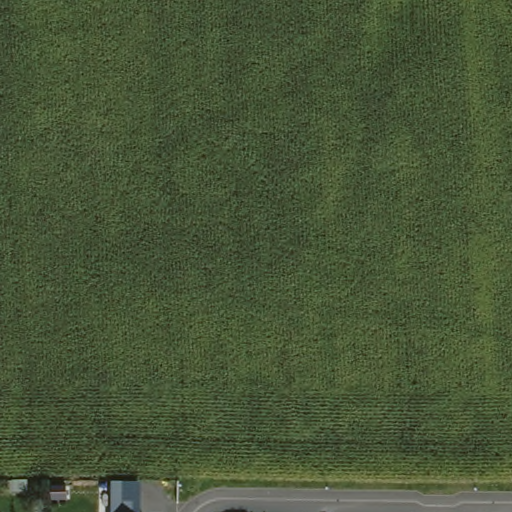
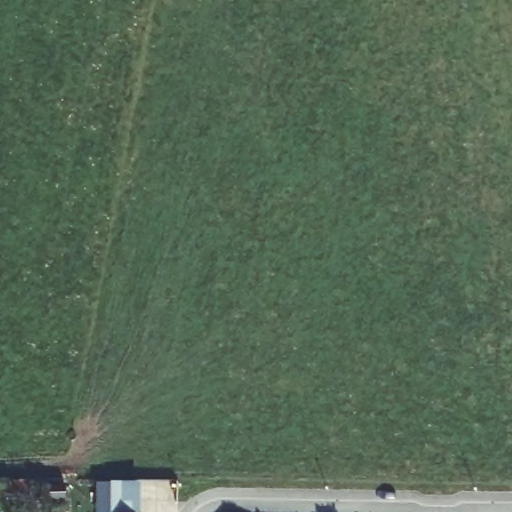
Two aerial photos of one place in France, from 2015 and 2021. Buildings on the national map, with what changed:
unchanged [(30,491),(15,491),(15,479),(29,479),(30,479),(30,491)]
unchanged [(67,483),(67,498),(53,498),(53,483),(67,483)]

